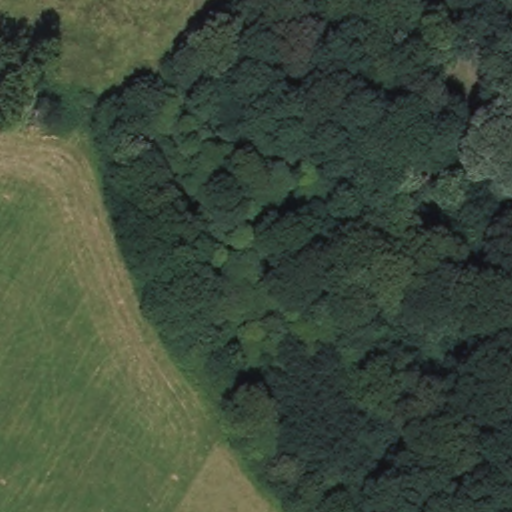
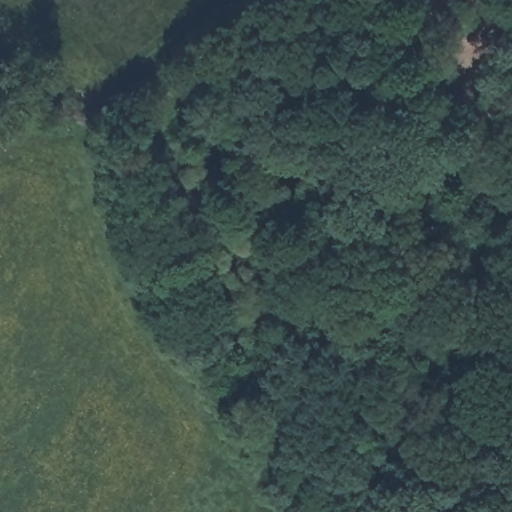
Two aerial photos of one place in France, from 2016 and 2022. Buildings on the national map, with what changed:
unchanged [(372,18),(365,0),(406,0),(410,9),(372,18)]

